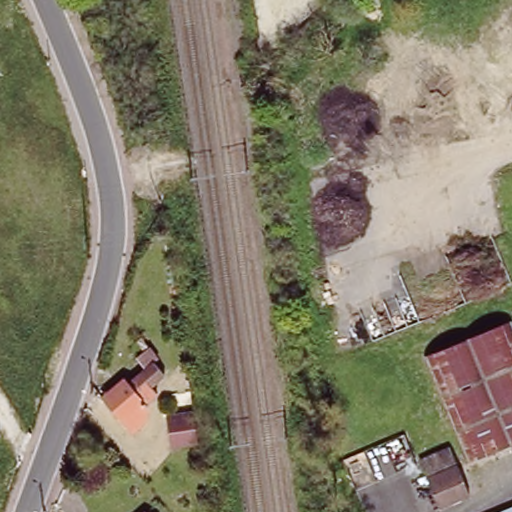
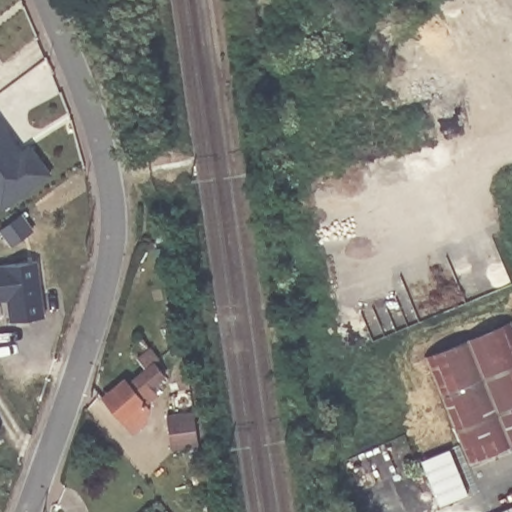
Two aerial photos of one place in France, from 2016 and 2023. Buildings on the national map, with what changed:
new [(5,130),(22,155),(30,149),(50,176),(0,213),(0,124),(5,130)]
new [(37,264),(44,320),(10,325),(7,302),(0,303),(0,269),(37,264)]
unchanged [(432,355),(512,323),(512,444),(472,460),(432,355)]
unchanged [(165,372),(122,413),(109,398),(147,361),(139,350),(144,345),(165,372)]
unchanged [(199,452),(172,456),(167,425),(194,420),(199,452)]
unchanged [(447,510),(435,482),(428,465),(457,453),(464,470),(476,497),(447,510)]
unchanged [(144,512),(149,508),(151,512),(144,512)]

